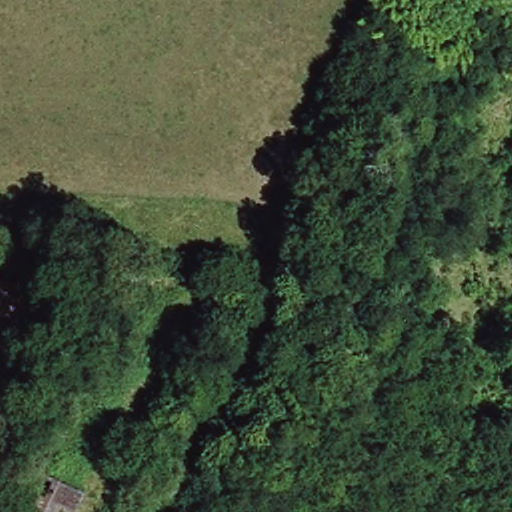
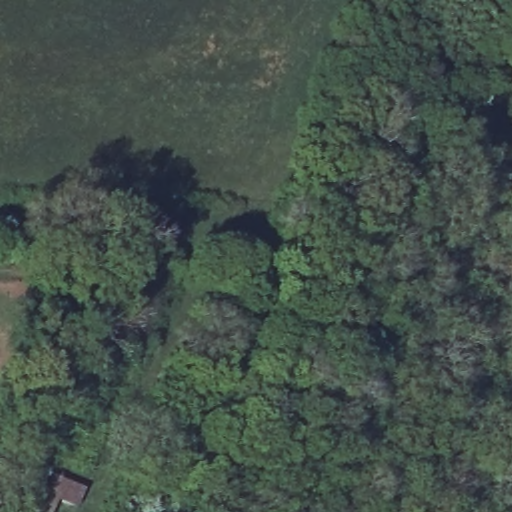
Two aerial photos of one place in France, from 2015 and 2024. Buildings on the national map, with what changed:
unchanged [(57,512),(27,512),(45,478),(86,496),(78,512),(67,512),(59,510),(57,512)]

